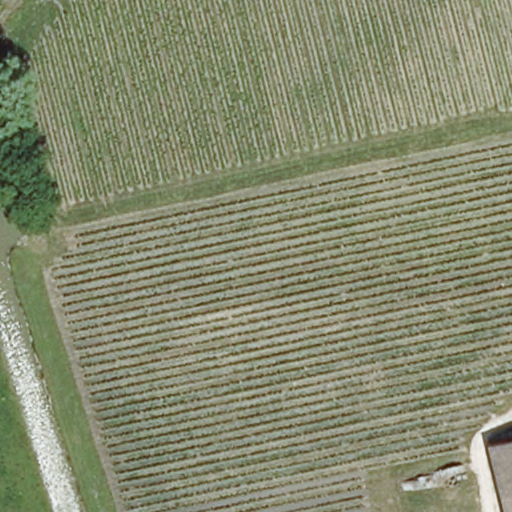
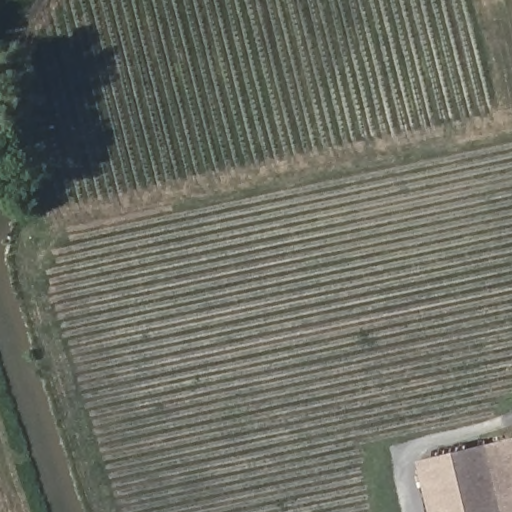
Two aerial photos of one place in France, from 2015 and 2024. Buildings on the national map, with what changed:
unchanged [(512,442),(512,512),(503,512),(488,447),(512,442)]
new [(503,512),(429,512),(417,463),(488,447),(503,512)]

